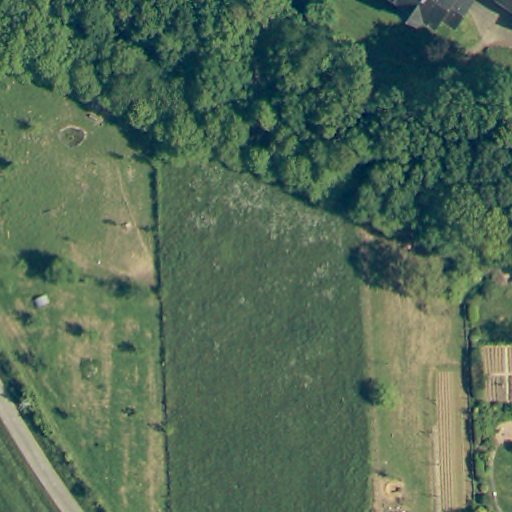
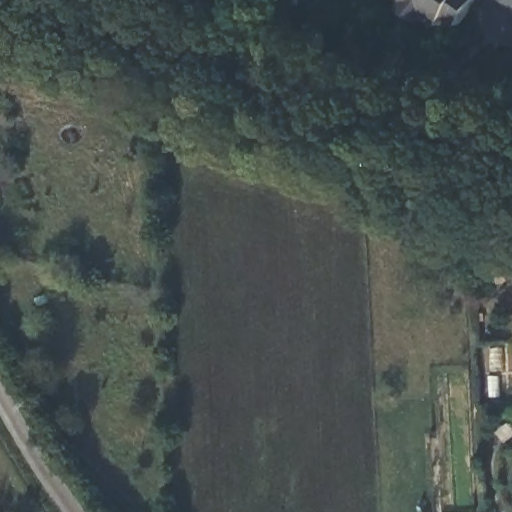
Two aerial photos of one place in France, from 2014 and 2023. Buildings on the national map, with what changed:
unchanged [(446,15),(440,24),(427,15),(419,19),(402,7),(402,0),(474,0),(458,23),(446,15)]

